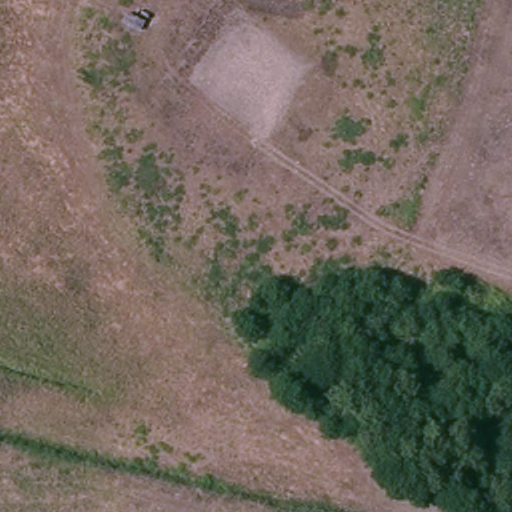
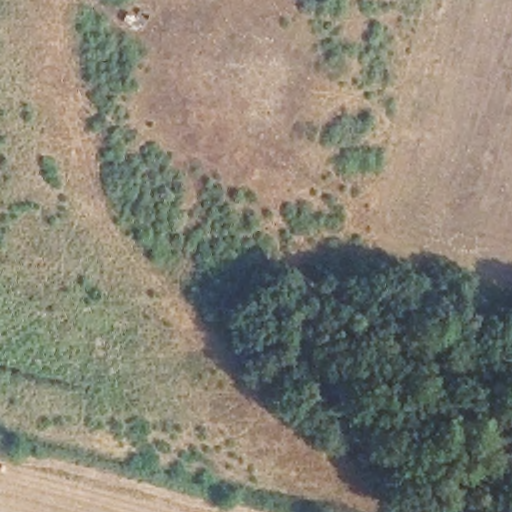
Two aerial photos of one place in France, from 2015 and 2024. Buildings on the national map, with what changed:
[]

